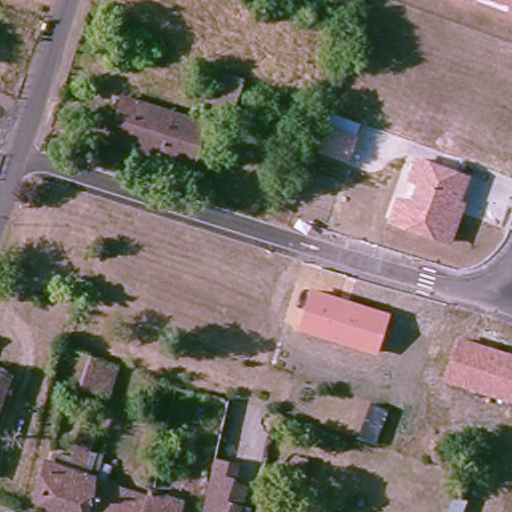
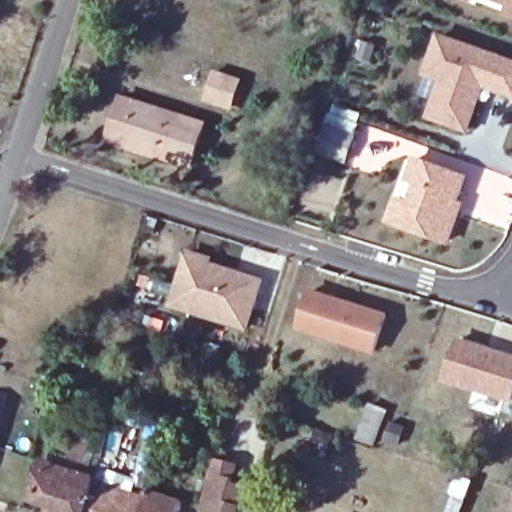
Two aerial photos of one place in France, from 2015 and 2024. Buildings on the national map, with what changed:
unchanged [(474,5),(459,0),(476,0),(474,5)]
unchanged [(505,14),(507,7),(490,0),(512,0),(512,17),(505,14)]
new [(512,58),(512,99),(485,89),(470,135),(426,118),(434,99),(421,93),(427,77),(423,75),(439,32),(512,58)]
unchanged [(244,76),(236,102),(209,93),(217,68),(244,76)]
unchanged [(207,119),(193,162),(112,135),(125,92),(207,119)]
new [(333,104),(361,113),(358,123),(361,124),(357,133),(326,122),(333,104)]
unchanged [(359,133),(350,164),(316,153),(326,122),(359,133)]
unchanged [(470,174),(461,200),(467,202),(451,246),(386,224),(397,194),(409,199),(415,183),(404,180),(413,155),(470,174)]
new [(214,258),(212,264),(265,279),(250,331),(170,307),(188,249),(214,258)]
unchanged [(390,313),(377,356),(297,332),(310,288),(390,313)]
unchanged [(512,354),(512,402),(443,382),(456,337),(512,354)]
demolished [(0,344),(16,350),(0,398),(0,344)]
unchanged [(121,364),(111,395),(82,389),(95,353),(121,364)]
unchanged [(72,512),(36,500),(47,460),(93,475),(85,512),(72,512)]
unchanged [(237,468),(233,486),(242,488),(234,512),(202,512),(212,463),(237,468)]
unchanged [(85,512),(93,475),(94,470),(141,485),(145,487),(137,512),(85,512)]
unchanged [(181,498),(177,512),(137,512),(145,487),(181,498)]
unchanged [(284,505),(282,512),(258,512),(262,498),(284,505)]

